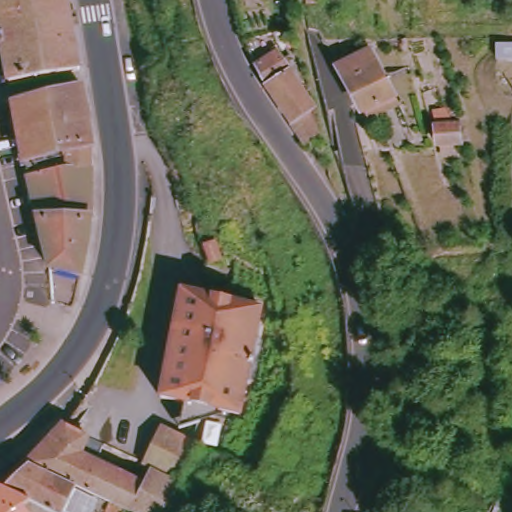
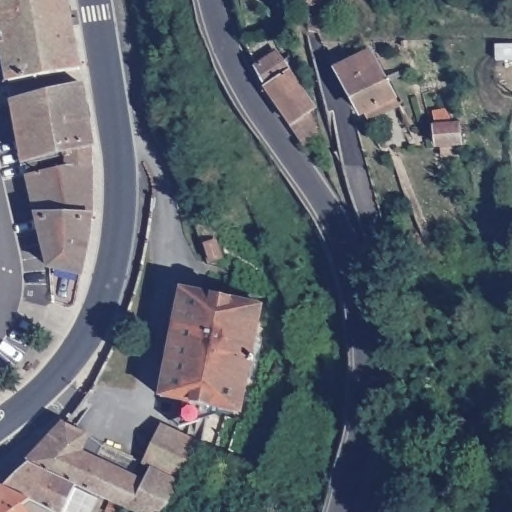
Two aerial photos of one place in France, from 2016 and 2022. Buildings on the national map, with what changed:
unchanged [(65,0),(79,85),(8,96),(0,45),(0,0),(65,0)]
unchanged [(499,45),(512,45),(512,61),(499,61),(499,45)]
unchanged [(286,129),(260,86),(250,70),(273,49),(288,71),(319,110),(328,125),(303,147),(286,129)]
unchanged [(368,119),(364,111),(361,113),(338,66),(371,49),(395,95),(392,96),(396,104),(368,119)]
unchanged [(62,166),(62,151),(20,163),(7,104),(78,86),(91,143),(90,169),(62,166)]
unchanged [(440,148),(438,126),(461,124),(463,146),(440,148)]
unchanged [(87,238),(77,279),(45,270),(24,179),(62,166),(90,169),(87,238)]
unchanged [(237,411),(160,395),(182,288),(260,304),(237,411)]
unchanged [(100,442),(92,462),(147,487),(157,468),(164,472),(176,477),(146,512),(133,512),(116,504),(28,463),(63,425),(100,442)]
unchanged [(176,477),(157,468),(142,463),(159,425),(193,441),(176,477)]
unchanged [(116,504),(112,512),(106,512),(98,509),(98,512),(54,512),(2,486),(28,463),(116,504)]
unchanged [(2,486),(54,512),(0,512),(0,487),(2,486)]

